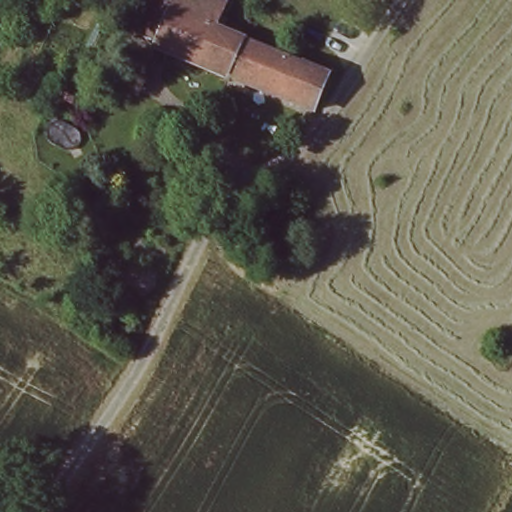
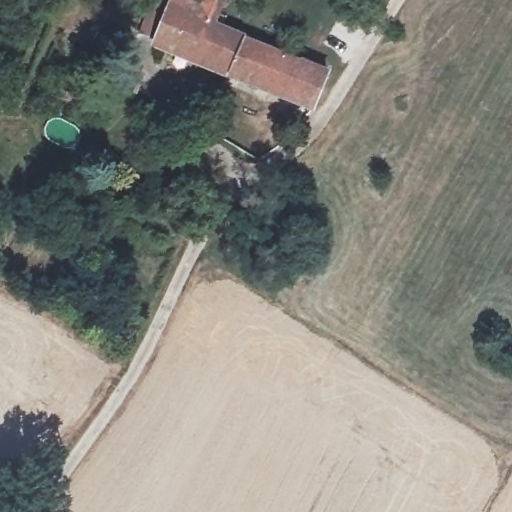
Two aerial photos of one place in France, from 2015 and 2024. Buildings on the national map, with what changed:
unchanged [(220,62),(158,35),(168,1),(168,0),(221,0),(214,21),(232,29),(220,62)]
unchanged [(308,105),(234,70),(246,36),(322,68),(308,105)]

